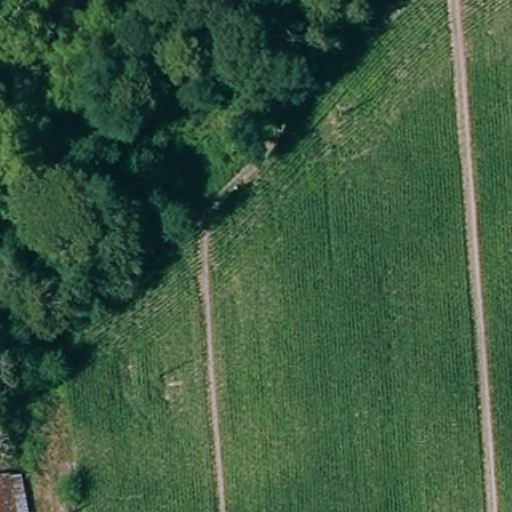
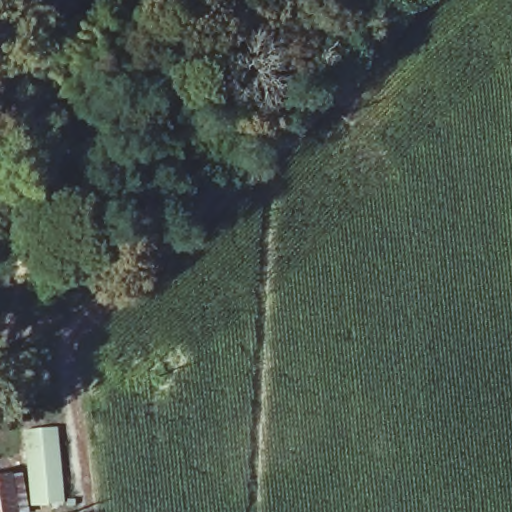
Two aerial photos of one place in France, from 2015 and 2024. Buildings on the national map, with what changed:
new [(30,507),(22,430),(57,426),(65,503),(30,507)]
unchanged [(19,512),(0,512),(0,479),(14,477),(19,512)]

